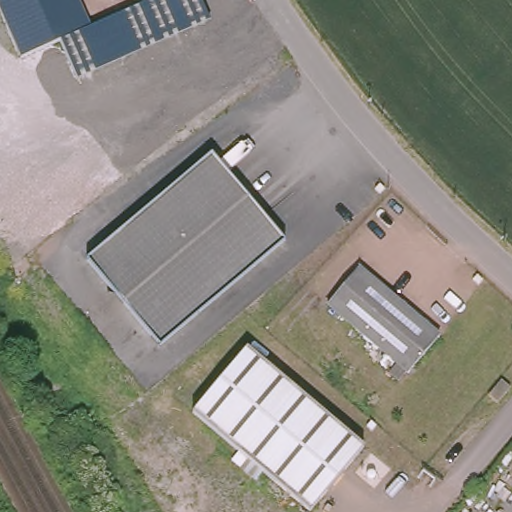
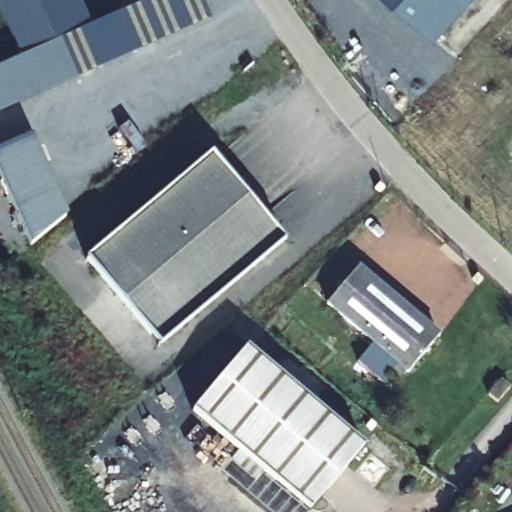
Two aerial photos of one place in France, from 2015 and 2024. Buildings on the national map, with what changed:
unchanged [(92,25),(149,0),(201,0),(210,21),(78,79),(61,40),(21,55),(0,6),(0,0),(81,0),(92,25)]
new [(440,35),(400,0),(473,0),(440,35)]
new [(0,111),(0,67),(59,40),(76,76),(0,111)]
new [(31,136),(69,220),(35,249),(0,172),(0,150),(31,136)]
unchanged [(209,152),(282,240),(180,326),(108,240),(209,152)]
unchanged [(159,345),(87,257),(108,240),(180,326),(159,345)]
unchanged [(326,296),(357,260),(439,329),(408,365),(406,363),(397,373),(387,365),(395,355),(326,296)]
unchanged [(361,444),(307,509),(191,410),(245,346),(361,444)]
unchanged [(511,386),(496,401),(489,393),(503,379),(511,386)]

